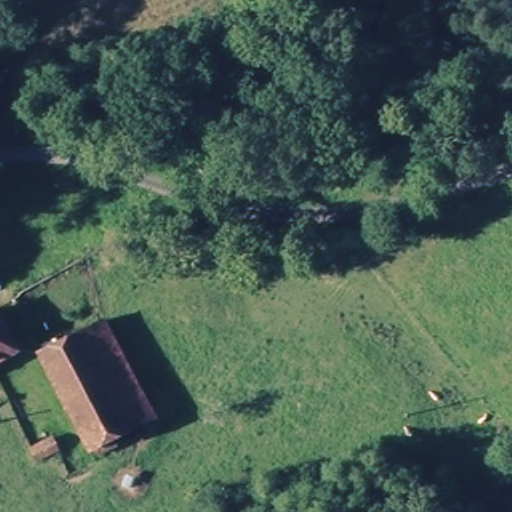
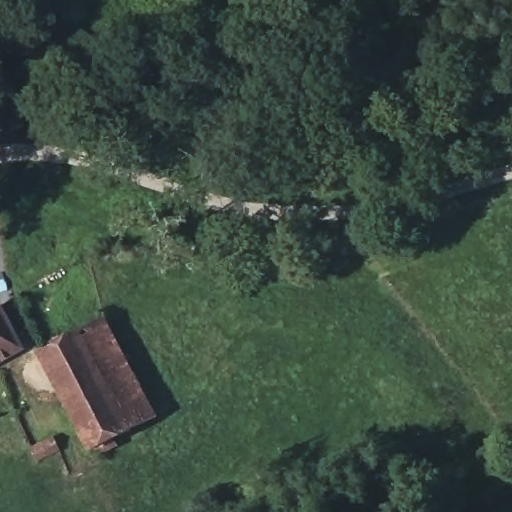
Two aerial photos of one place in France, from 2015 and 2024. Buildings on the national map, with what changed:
unchanged [(25,350),(0,363),(0,311),(3,310),(25,350)]
unchanged [(168,420),(152,430),(87,461),(37,362),(60,351),(106,330),(111,340),(136,400),(156,392),(168,420)]

